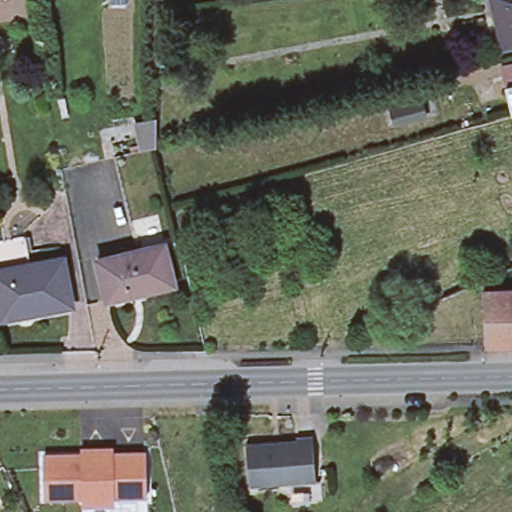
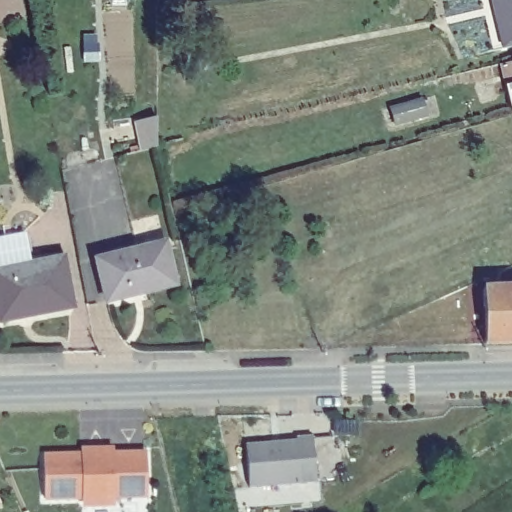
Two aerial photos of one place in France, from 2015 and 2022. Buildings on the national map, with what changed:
unchanged [(490,0),(512,0),(512,49),(501,51),(490,0)]
unchanged [(422,104),(427,118),(395,127),(391,113),(422,104)]
unchanged [(31,273),(0,279),(0,250),(26,245),(31,273)]
unchanged [(108,305),(98,263),(165,246),(175,288),(108,305)]
unchanged [(64,267),(74,314),(2,328),(0,319),(0,279),(31,273),(64,267)]
unchanged [(486,351),(484,296),(484,285),(512,272),(512,350),(486,351)]
unchanged [(317,480),(252,485),(249,443),(299,439),(299,435),(315,434),(316,452),(317,480)]
unchanged [(83,452),(95,452),(111,452),(115,457),(148,456),(149,498),(117,499),(117,501),(112,507),(89,507),(84,502),(84,500),(47,501),(46,458),(83,457),(83,452)]

